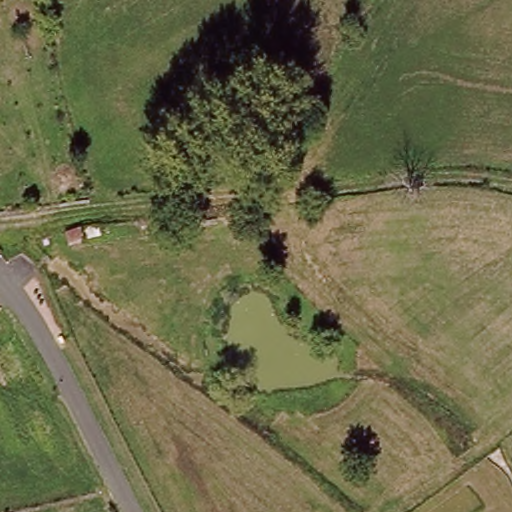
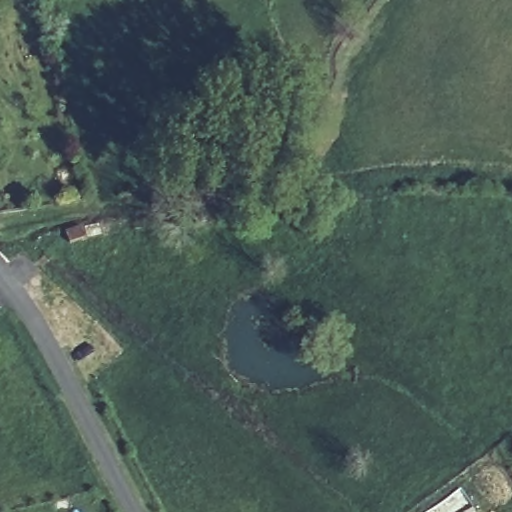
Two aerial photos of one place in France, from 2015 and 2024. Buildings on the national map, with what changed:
unchanged [(70,243),(58,247),(55,237),(69,235),(70,243)]

